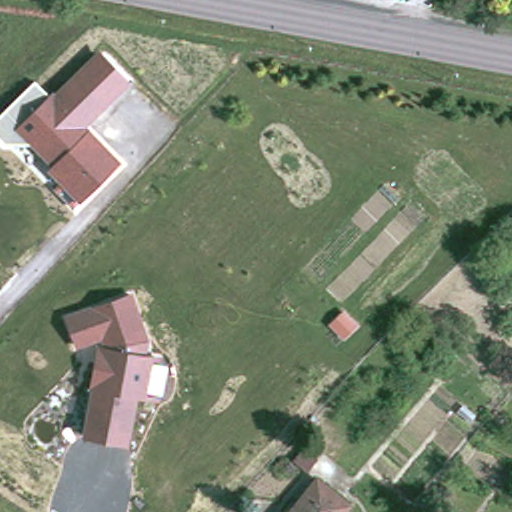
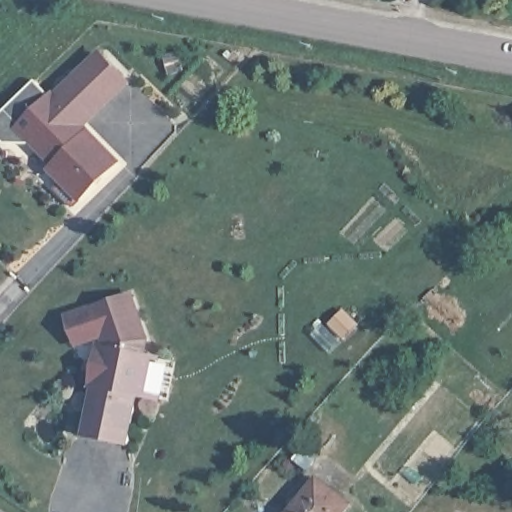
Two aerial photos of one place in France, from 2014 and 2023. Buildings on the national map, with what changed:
unchanged [(50,95),(100,46),(132,81),(87,127),(120,162),(78,205),(45,171),(49,166),(25,143),(5,145),(0,140),(0,113),(35,79),(50,95)]
unchanged [(133,290),(152,341),(150,355),(155,356),(148,397),(139,396),(128,448),(81,438),(98,340),(76,350),(65,314),(133,290)]
unchanged [(317,480),(349,506),(344,512),(291,512),(317,480)]

